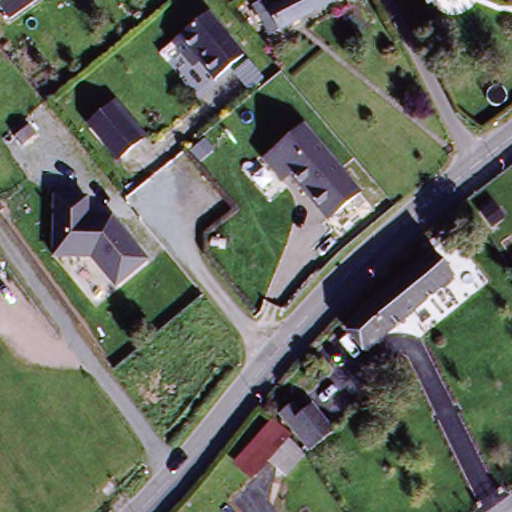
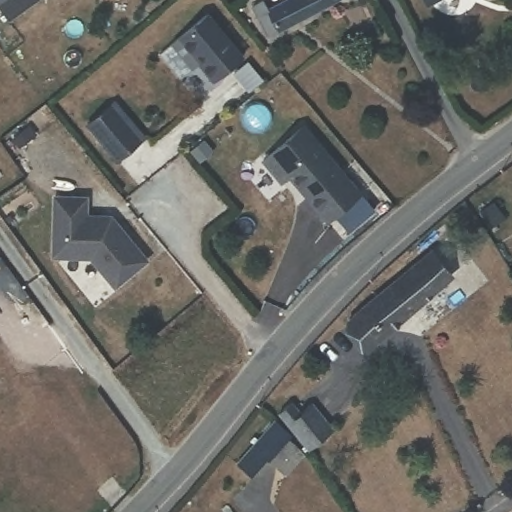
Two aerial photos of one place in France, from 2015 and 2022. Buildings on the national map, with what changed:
unchanged [(10,0),(0,6),(0,0),(10,0)]
unchanged [(278,0),(278,1),(280,4),(287,0),(332,0),(280,30),(269,9),(265,0),(278,0)]
unchanged [(423,0),(428,0),(424,2),(423,0)]
unchanged [(243,56),(212,82),(177,37),(207,12),(243,56)]
unchanged [(146,137),(117,163),(87,127),(116,102),(146,137)]
unchanged [(362,191),(327,223),(288,180),(280,187),(261,164),(303,125),(362,191)]
unchanged [(89,198),(89,216),(112,215),(149,261),(115,290),(91,260),(52,260),(53,197),(89,198)]
unchanged [(445,279),(363,350),(350,336),(357,330),(350,322),(424,256),(445,279)]
unchanged [(314,405),(334,435),(309,452),(282,411),(294,402),(302,412),(314,405)]
unchanged [(273,420),(291,440),(251,480),(232,460),(273,420)]

